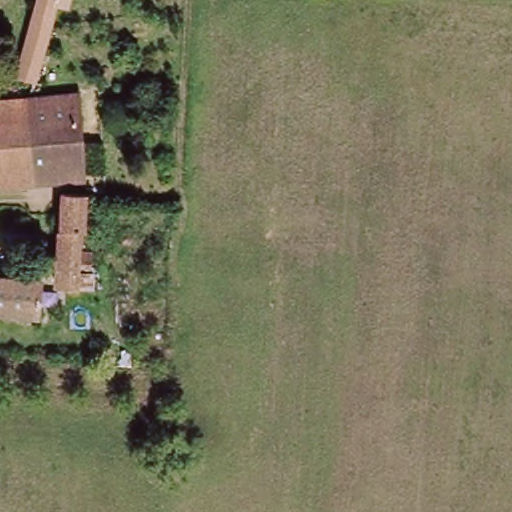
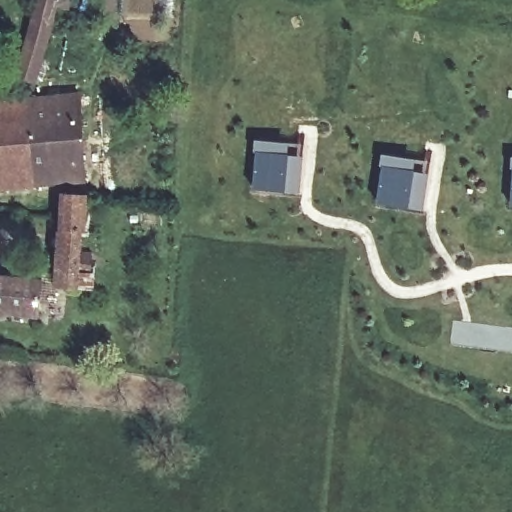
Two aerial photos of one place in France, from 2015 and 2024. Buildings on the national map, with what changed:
unchanged [(24,61),(42,0),(71,0),(74,1),(69,18),(59,15),(53,33),(37,86),(18,78),(24,61)]
unchanged [(31,104),(81,98),(84,138),(89,183),(37,187),(31,104)]
unchanged [(31,104),(37,187),(0,189),(0,107),(27,105),(31,104)]
new [(252,191),(255,143),(289,144),(288,156),(302,157),(299,194),(252,191)]
new [(377,203),(382,155),(415,161),(415,173),(427,175),(422,210),(377,203)]
new [(510,207),(512,158),(512,207),(510,207)]
unchanged [(56,280),(61,207),(61,195),(86,197),(85,231),(82,235),(80,259),(92,261),(90,275),(79,274),(77,292),(55,288),(55,285),(56,280)]
unchanged [(39,319),(0,314),(0,280),(45,286),(39,319)]

